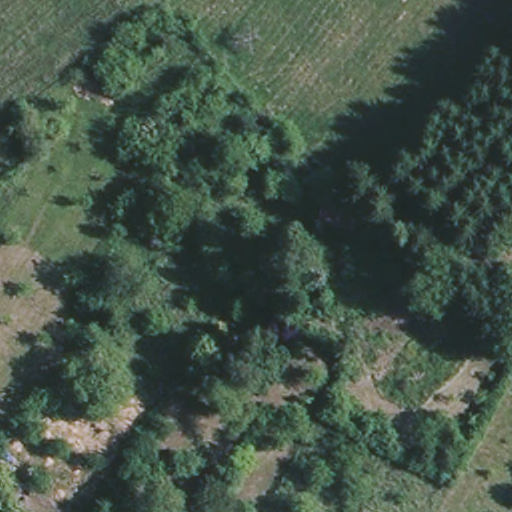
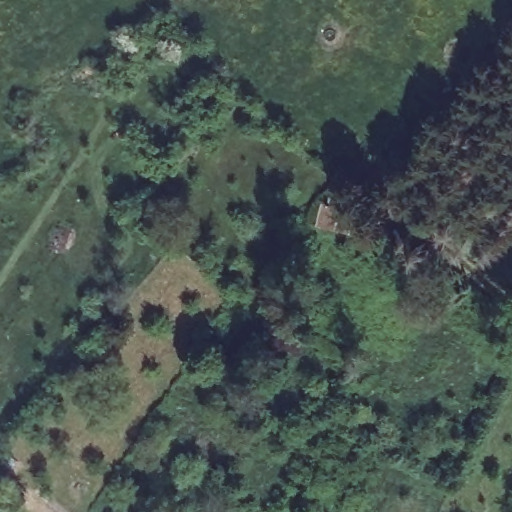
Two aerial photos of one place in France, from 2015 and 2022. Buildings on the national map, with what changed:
unchanged [(359,195),(354,208),(362,211),(355,232),(330,222),(337,201),(344,203),(349,190),(359,195)]

